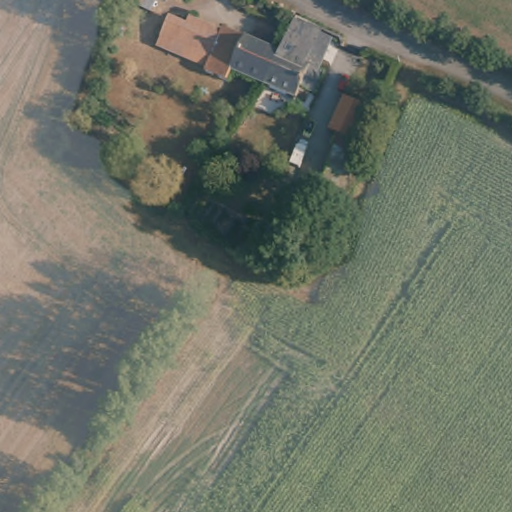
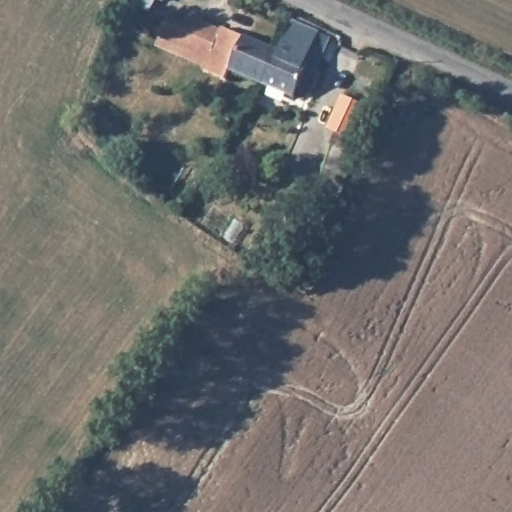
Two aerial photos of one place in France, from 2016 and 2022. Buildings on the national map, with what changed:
unchanged [(174,19),(191,27),(194,20),(221,33),(221,32),(276,59),(260,89),(220,69),(217,75),(204,69),(209,59),(174,44),(164,38),(174,19)]
unchanged [(328,51),(313,80),(319,82),(309,100),(294,92),(288,104),(260,89),(276,59),(292,30),(328,51)]
unchanged [(366,106),(346,147),(332,140),(338,127),(330,124),(344,95),(366,106)]

